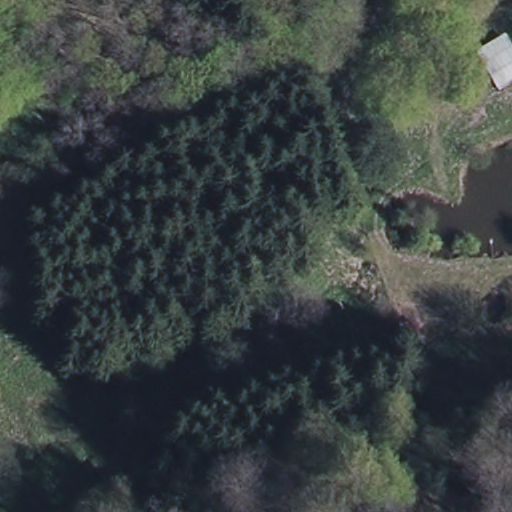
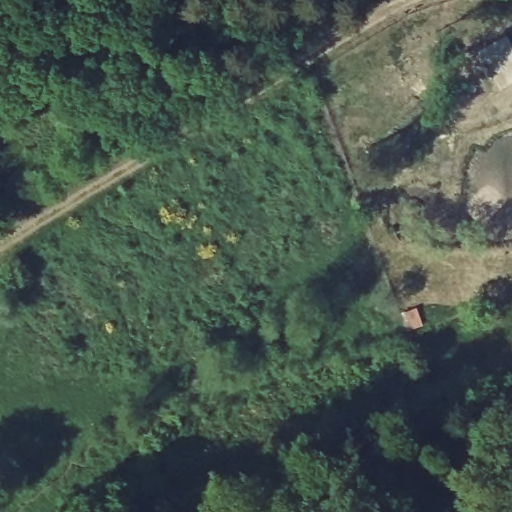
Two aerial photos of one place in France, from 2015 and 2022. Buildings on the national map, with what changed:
unchanged [(512,84),(501,91),(475,55),(507,36),(512,44),(512,84)]

